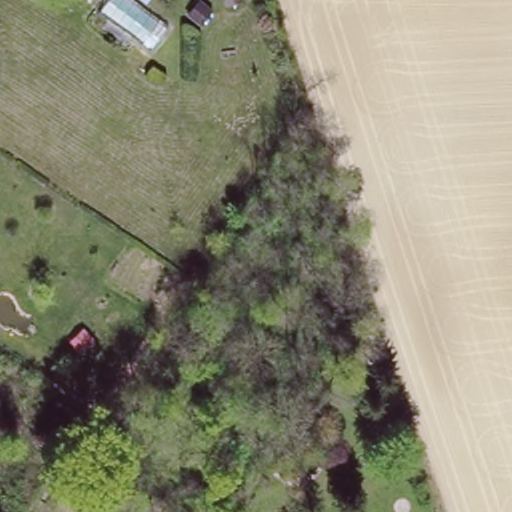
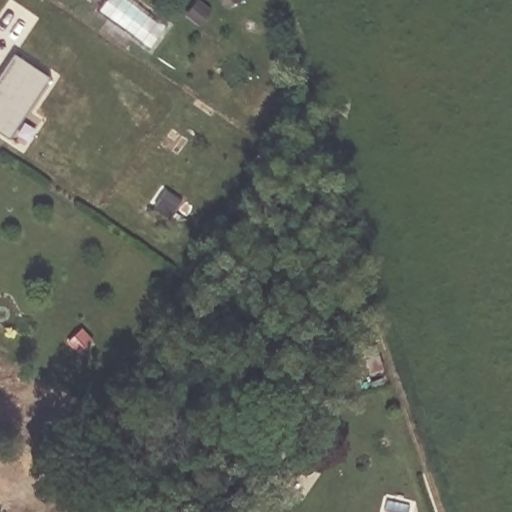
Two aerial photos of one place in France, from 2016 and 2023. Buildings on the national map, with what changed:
unchanged [(251,0),(251,1),(234,7),(232,0),(251,0)]
new [(0,130),(0,78),(16,54),(52,76),(11,138),(0,130)]

